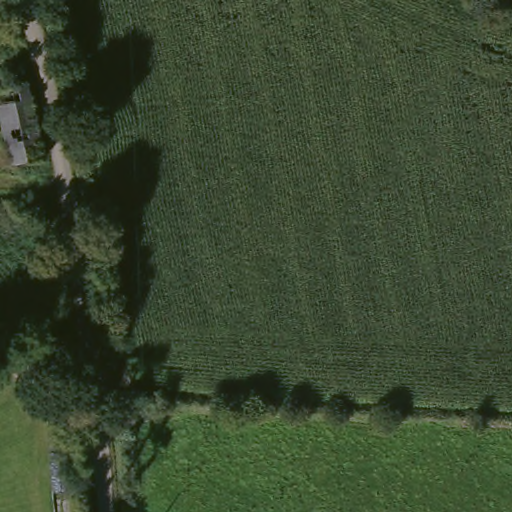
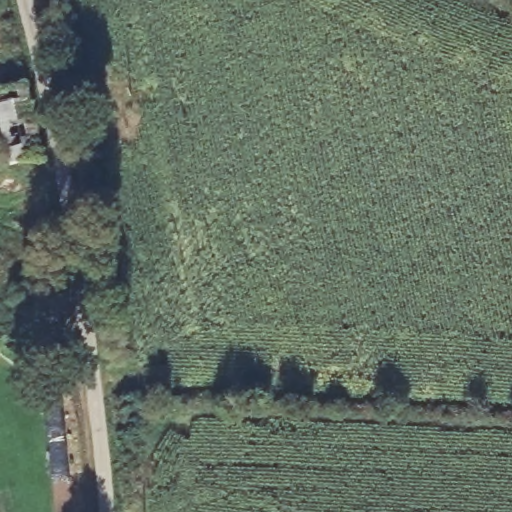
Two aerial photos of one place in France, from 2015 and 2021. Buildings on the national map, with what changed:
unchanged [(12,170),(9,156),(0,158),(0,58),(10,54),(31,146),(31,150),(32,165),(12,170)]

